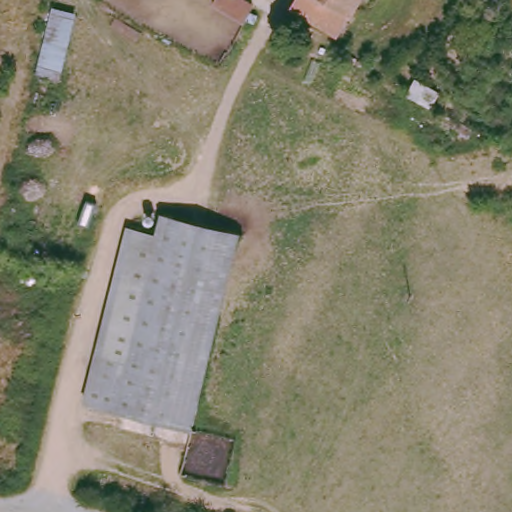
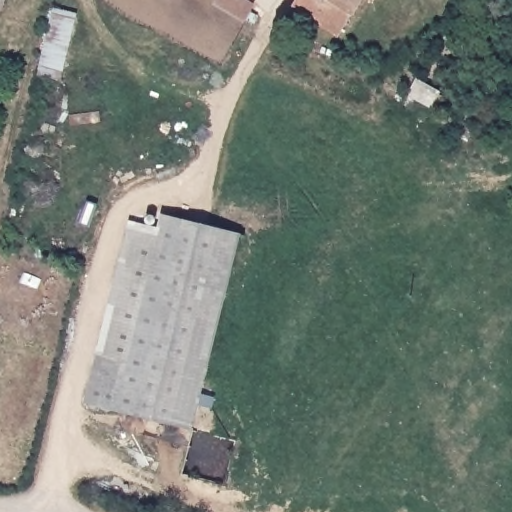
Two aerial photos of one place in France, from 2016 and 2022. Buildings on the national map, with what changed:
unchanged [(252,2),(247,11),(244,18),(242,23),(211,5),(214,0),(248,0),(252,2)]
unchanged [(336,41),(290,13),(297,0),(360,0),(336,41)]
unchanged [(64,80),(34,74),(47,3),(75,10),(64,80)]
unchanged [(421,105),(424,97),(438,102),(435,112),(432,118),(419,111),(421,105)]
unchanged [(240,229),(193,423),(87,396),(97,347),(128,226),(157,233),(164,209),(240,229)]

